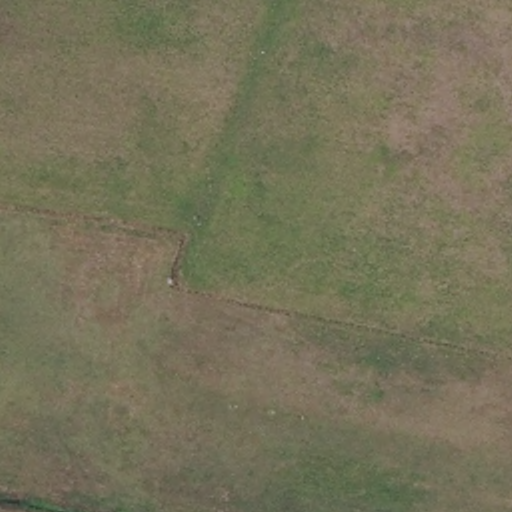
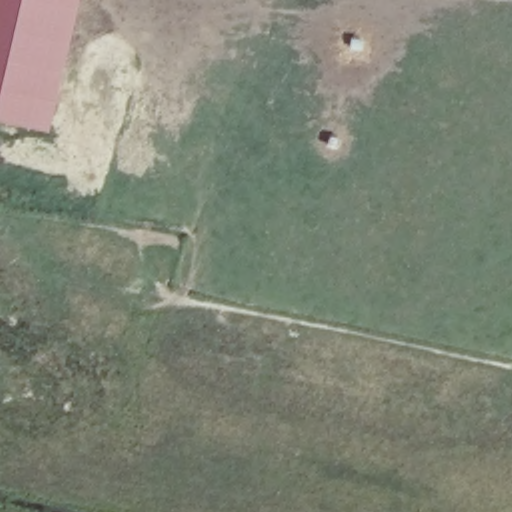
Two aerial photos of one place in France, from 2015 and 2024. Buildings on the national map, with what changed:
new [(50,133),(0,123),(0,0),(79,0),(50,133)]

